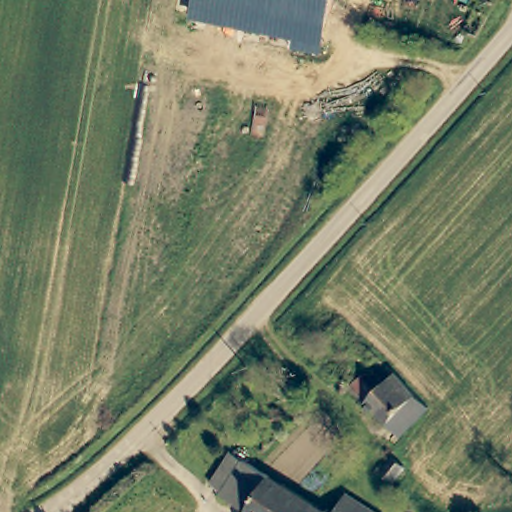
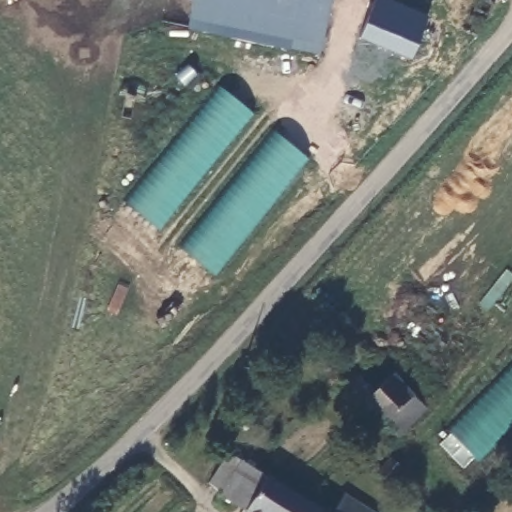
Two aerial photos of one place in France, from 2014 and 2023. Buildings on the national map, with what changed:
unchanged [(323,56),(193,28),(199,0),(335,0),(332,14),(323,56)]
unchanged [(483,0),(487,0),(497,6),(478,36),(467,29),(483,0)]
new [(161,231),(128,202),(222,86),(256,115),(161,231)]
new [(216,276),(183,247),(275,130),(313,160),(216,276)]
new [(449,432),(512,366),(512,429),(478,461),(449,432)]
new [(396,439),(361,406),(346,389),(360,375),(373,391),(395,372),(430,409),(396,439)]
demolished [(370,411),(398,381),(420,402),(393,432),(370,411)]
unchanged [(323,512),(243,512),(219,497),(223,490),(213,483),(231,455),(242,461),(326,507),(323,512)]
unchanged [(392,462),(404,471),(395,483),(382,476),(392,462)]
unchanged [(371,512),(337,512),(345,497),(371,512)]
unchanged [(326,507),(333,512),(323,512),(326,507)]

